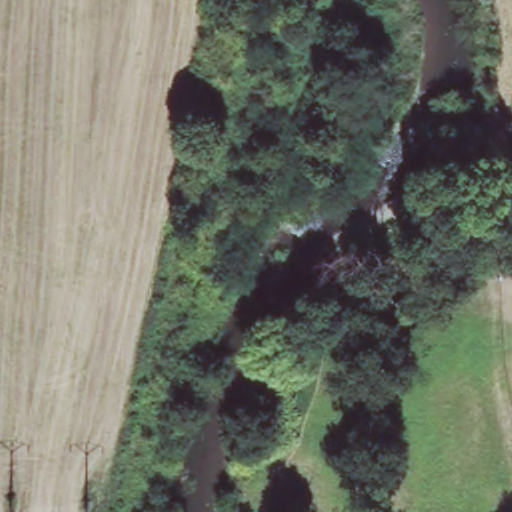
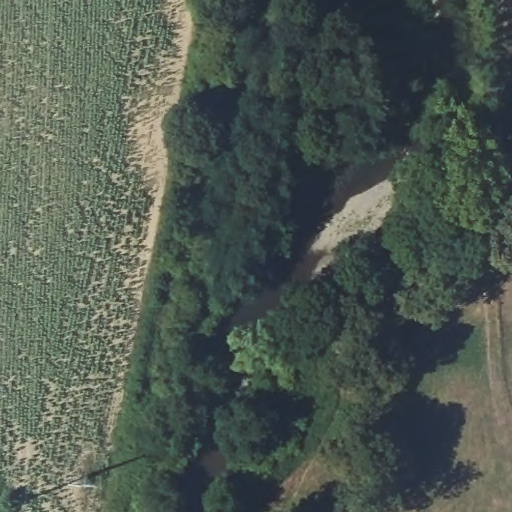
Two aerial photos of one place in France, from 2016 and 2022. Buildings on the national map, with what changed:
[]

